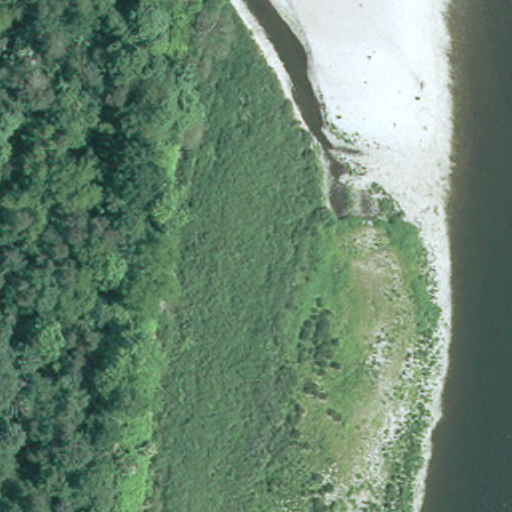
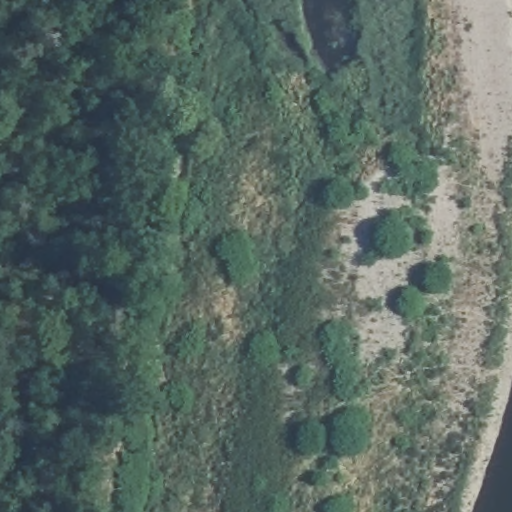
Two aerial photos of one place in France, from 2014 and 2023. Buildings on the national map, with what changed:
[]

